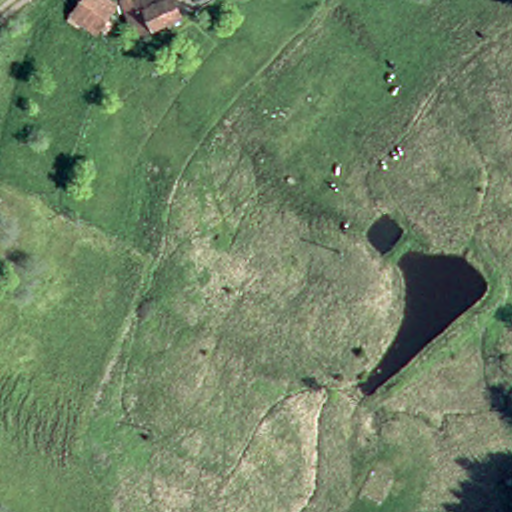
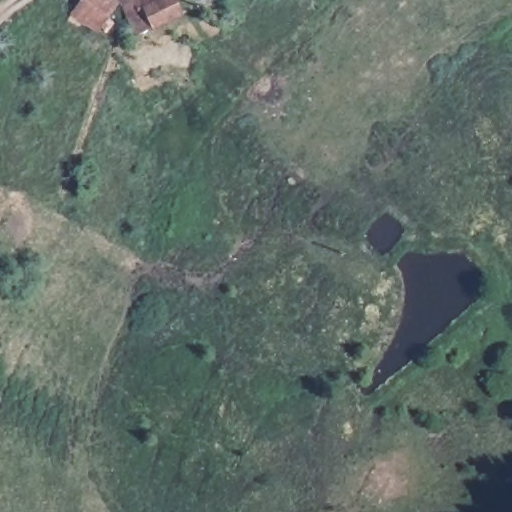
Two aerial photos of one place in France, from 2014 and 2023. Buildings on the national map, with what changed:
unchanged [(96,35),(70,16),(81,0),(118,0),(119,0),(96,35)]
unchanged [(183,15),(136,36),(120,0),(177,0),(183,15)]

